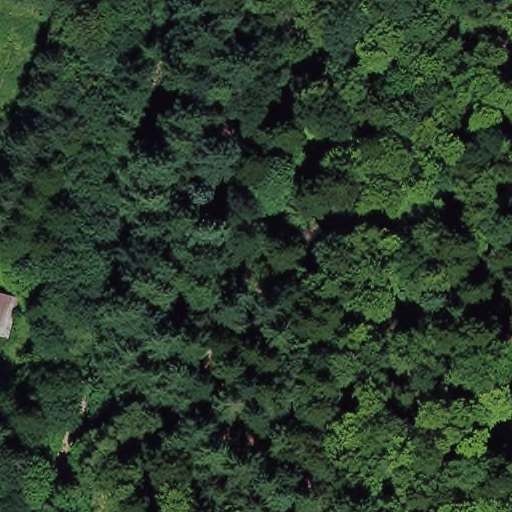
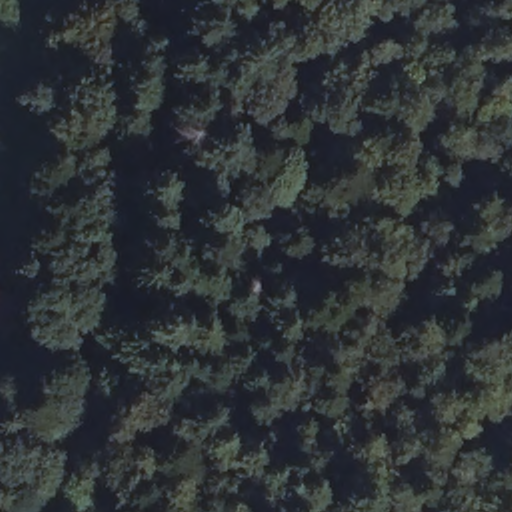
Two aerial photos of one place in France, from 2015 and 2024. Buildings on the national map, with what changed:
unchanged [(11,301),(0,319),(0,294),(11,301)]

